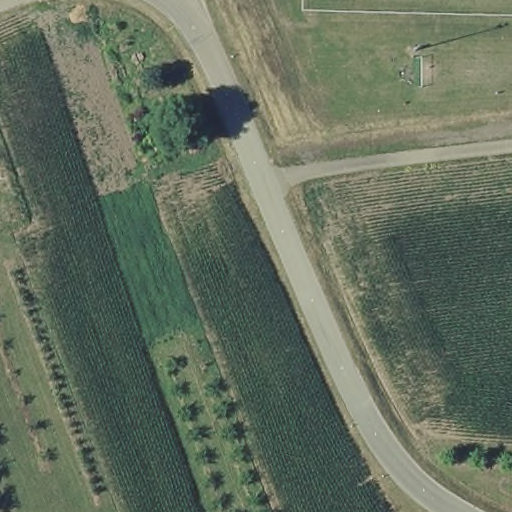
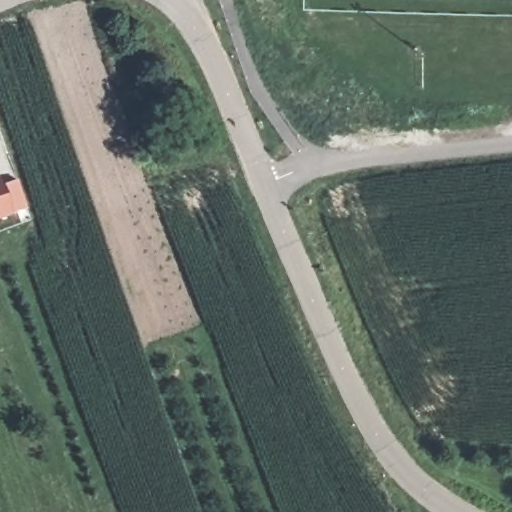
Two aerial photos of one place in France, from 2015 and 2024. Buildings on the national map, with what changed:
new [(1,184),(17,179),(27,208),(0,218),(0,181),(1,184)]

